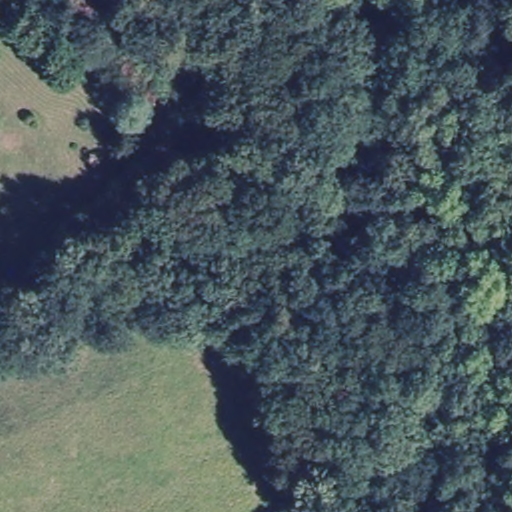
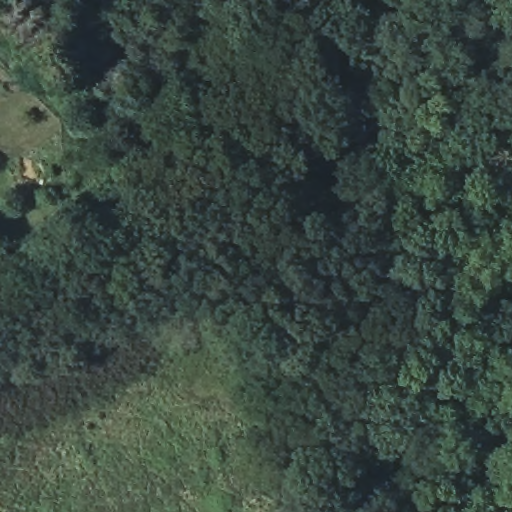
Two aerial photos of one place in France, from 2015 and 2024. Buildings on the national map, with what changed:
[]

